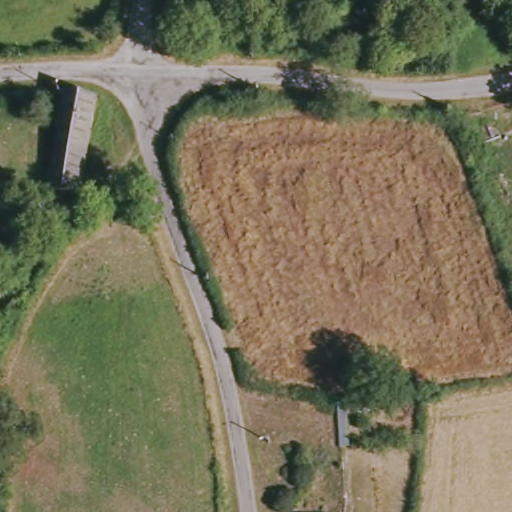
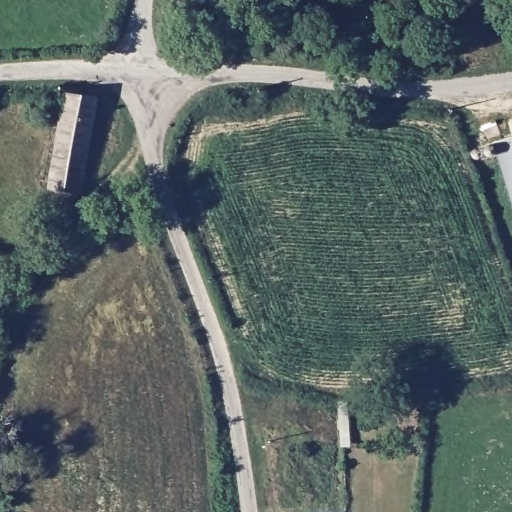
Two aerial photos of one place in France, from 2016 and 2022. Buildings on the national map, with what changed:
unchanged [(103,96),(89,194),(57,190),(70,93),(103,96)]
new [(512,205),(493,143),(512,138),(512,205)]

